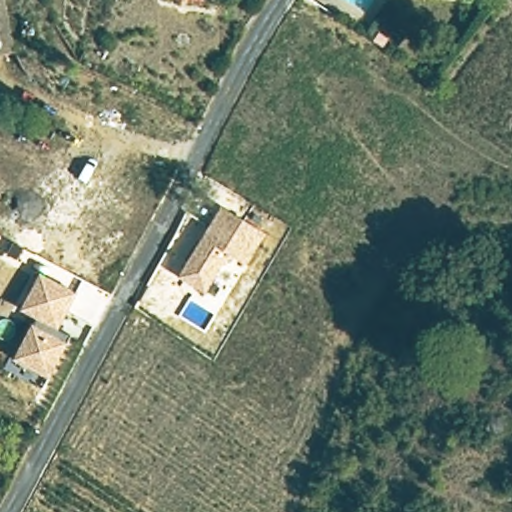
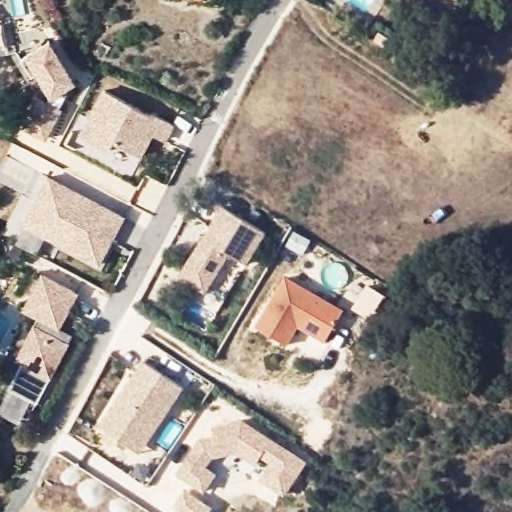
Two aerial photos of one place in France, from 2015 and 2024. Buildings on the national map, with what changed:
unchanged [(6,0),(13,55),(0,57),(0,0),(6,0)]
demolished [(210,0),(210,6),(204,6),(162,5),(163,0),(210,0)]
new [(35,97),(44,102),(47,98),(34,74),(27,78),(17,60),(23,56),(47,41),(72,84),(56,108),(60,109),(42,140),(20,128),(35,97)]
new [(100,90),(148,117),(150,114),(172,126),(164,141),(151,134),(139,158),(110,140),(103,151),(77,136),(100,90)]
new [(122,219),(97,267),(18,226),(46,177),(122,219)]
unchanged [(248,267),(228,254),(209,294),(179,278),(220,205),(268,234),(248,267)]
unchanged [(60,330),(72,337),(50,381),(14,363),(35,319),(20,312),(40,274),(80,294),(60,330)]
new [(283,278),(341,313),(323,344),(297,327),(286,347),(255,327),(283,278)]
new [(182,390),(140,456),(98,428),(140,362),(182,390)]
new [(202,440),(215,437),(213,428),(243,422),(304,462),(285,492),(250,469),(220,477),(210,494),(178,475),(202,440)]
new [(185,491),(213,508),(211,512),(183,512),(175,508),(185,491)]

